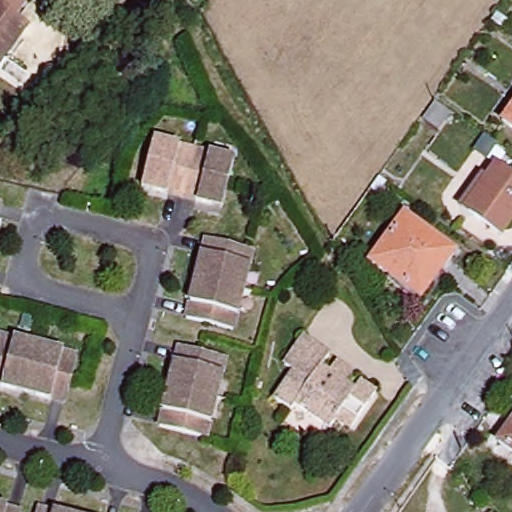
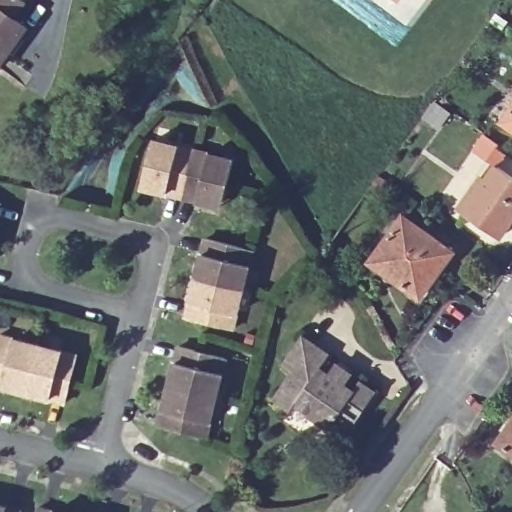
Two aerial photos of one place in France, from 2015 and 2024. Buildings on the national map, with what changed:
new [(398,9),(406,16),(415,5),(420,9),(405,27),(371,0),(393,0),(400,5),(398,9)]
new [(393,0),(404,0),(400,5),(393,0)]
new [(422,0),(426,0),(425,2),(422,0)]
unchanged [(27,30),(0,66),(0,10),(27,30)]
unchanged [(512,110),(512,133),(501,125),(512,110)]
unchanged [(210,202),(151,187),(140,185),(142,179),(152,137),(232,158),(222,199),(221,205),(210,202)]
unchanged [(512,218),(501,234),(467,210),(487,183),(482,180),(494,164),(512,177),(512,218)]
unchanged [(452,249),(420,295),(370,260),(403,215),(452,249)]
unchanged [(251,247),(231,326),(185,315),(205,236),(251,247)]
unchanged [(76,353),(64,399),(0,383),(0,333),(76,353)]
unchanged [(355,383),(371,395),(349,428),(336,419),(328,430),(295,406),(292,411),(275,398),(293,372),(284,365),(303,339),(326,357),(318,368),(325,375),(333,363),(342,370),(335,381),(350,392),(355,383)]
unchanged [(225,355),(204,434),(158,423),(179,343),(225,355)]
unchanged [(512,420),(512,450),(497,440),(512,420)]
unchanged [(21,508),(20,512),(0,512),(0,503),(21,508)]
unchanged [(66,512),(35,512),(37,505),(66,512)]

